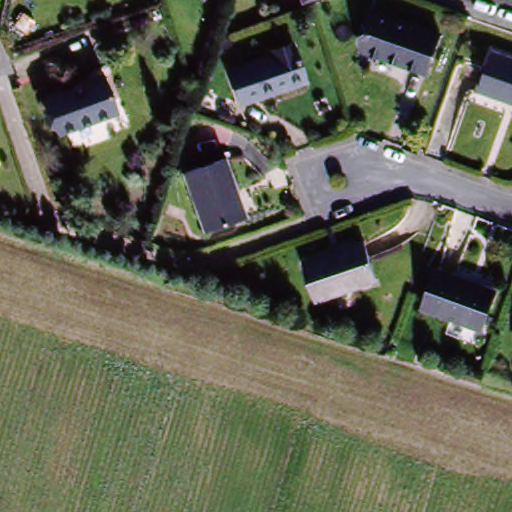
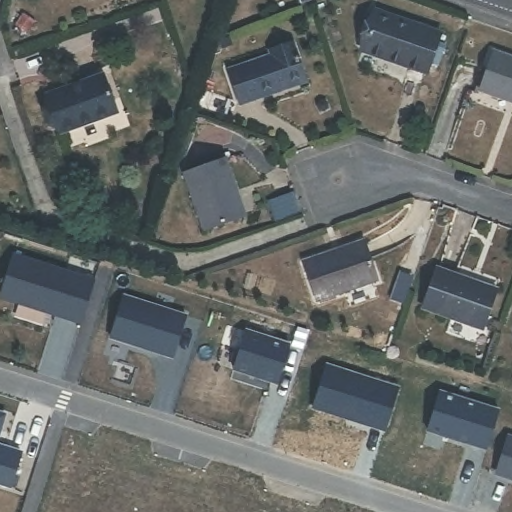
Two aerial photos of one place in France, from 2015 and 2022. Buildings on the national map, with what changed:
unchanged [(388,67),(390,63),(363,53),(377,14),(442,40),(427,81),(388,67)]
unchanged [(308,82),(243,104),(232,71),(273,57),(271,51),(295,43),(308,82)]
unchanged [(509,108),(477,97),(492,56),(512,63),(512,105),(511,104),(509,108)]
unchanged [(66,90),(64,85),(96,74),(111,115),(57,134),(44,98),(66,90)]
unchanged [(221,161),(234,193),(229,195),(237,221),(200,233),(182,174),(221,161)]
unchanged [(319,304),(305,264),(362,244),(376,284),(319,304)]
new [(82,323),(56,314),(56,312),(1,294),(14,254),(95,280),(82,323)]
unchanged [(495,293),(481,329),(423,308),(436,272),(495,293)]
new [(111,338),(124,295),(187,315),(173,358),(111,338)]
new [(290,344),(278,383),(234,369),(246,330),(290,344)]
new [(327,364),(399,388),(386,432),(312,409),(327,364)]
new [(487,449),(428,430),(441,390),(500,409),(487,449)]
new [(5,414),(0,430),(0,413),(5,414)]
new [(508,434),(512,436),(512,474),(497,470),(508,434)]
new [(0,483),(0,451),(3,452),(5,447),(21,452),(10,486),(0,483)]
new [(512,474),(512,478),(511,477),(512,474)]

